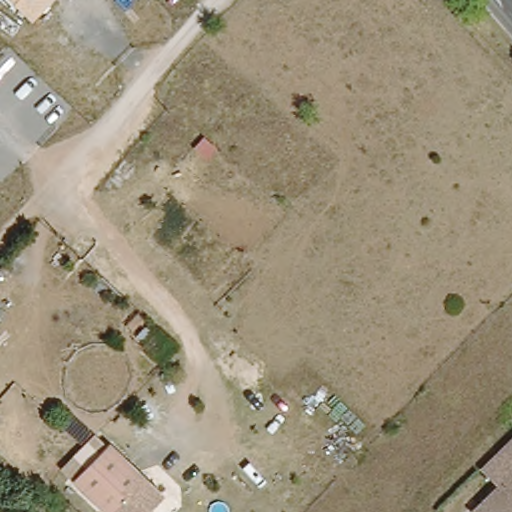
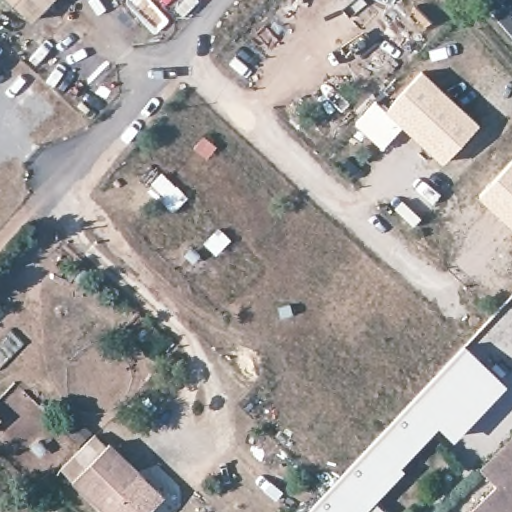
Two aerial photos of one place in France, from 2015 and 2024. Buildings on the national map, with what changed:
unchanged [(32,19),(12,0),(51,0),(32,19)]
new [(413,74),(472,125),(442,160),(383,109),(413,74)]
new [(512,163),(512,229),(477,198),(510,161),(512,163)]
unchanged [(4,306),(0,311),(0,304),(4,306)]
new [(497,386),(445,441),(429,427),(391,468),(395,471),(365,503),(375,512),(308,512),(460,351),(497,386)]
unchanged [(0,419),(0,416),(1,417),(0,419)]
unchanged [(488,462),(512,437),(512,478),(507,483),(500,489),(480,468),(488,462)]
unchanged [(146,512),(104,512),(71,483),(104,442),(162,493),(146,512)]
unchanged [(507,483),(512,478),(512,512),(477,512),(500,489),(507,483)]

